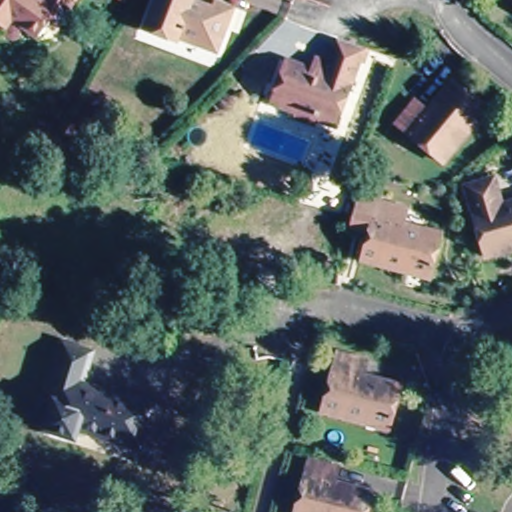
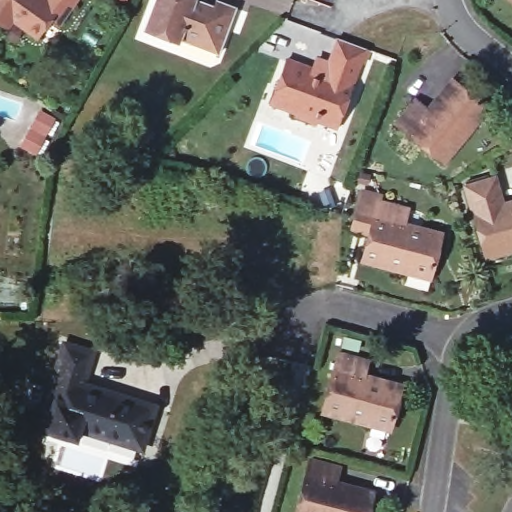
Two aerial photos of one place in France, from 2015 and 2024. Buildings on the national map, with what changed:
unchanged [(56,26),(48,20),(36,37),(10,17),(6,23),(0,19),(0,0),(74,0),(56,26)]
unchanged [(231,4),(223,25),(225,26),(214,53),(175,37),(174,41),(137,26),(147,0),(219,0),(231,4)]
unchanged [(365,48),(359,62),(356,60),(353,68),(347,82),(352,84),(334,126),(315,118),(312,127),(289,117),(291,110),(272,102),(290,61),(306,68),(312,54),(325,60),(335,35),(365,48)]
unchanged [(393,124),(410,97),(424,107),(444,78),(475,99),(483,105),(468,125),(445,160),(393,124)]
unchanged [(463,184),(492,175),(500,202),(512,198),(512,247),(484,255),(463,184)]
unchanged [(412,269),(361,254),(379,194),(409,203),(405,216),(441,227),(430,264),(427,273),(412,269)]
unchanged [(88,355),(80,385),(153,404),(142,448),(77,431),(74,443),(44,435),(51,409),(41,407),(58,347),(88,355)]
unchanged [(370,424),(324,413),(339,350),(369,357),(365,374),(400,383),(391,419),(389,429),(370,424)]
unchanged [(342,467),(338,480),(374,489),(368,512),(298,512),(311,459),(342,467)]

